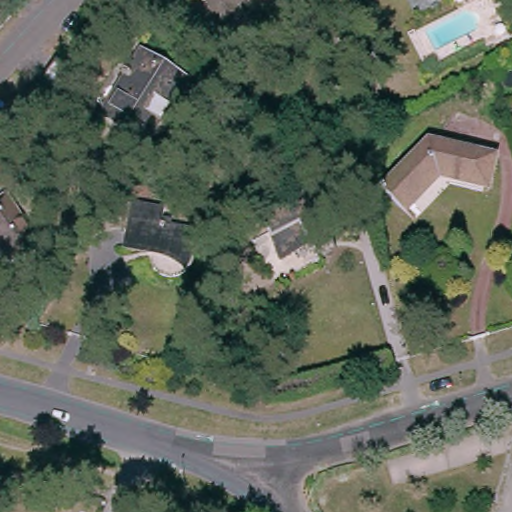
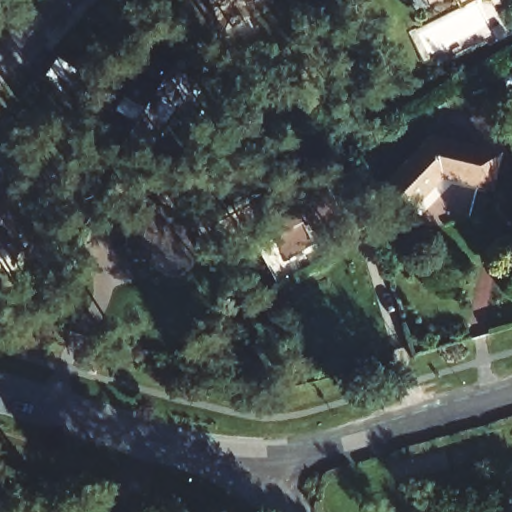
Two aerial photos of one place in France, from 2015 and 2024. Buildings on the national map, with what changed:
unchanged [(222,25),(214,11),(207,0),(240,0),(247,12),(222,25)]
unchanged [(428,4),(426,0),(435,0),(428,4)]
unchanged [(161,59),(159,64),(186,79),(171,105),(167,103),(146,140),(116,125),(120,117),(106,109),(139,47),(161,59)]
unchanged [(478,184),(431,171),(394,209),(371,187),(419,133),(485,151),(478,184)]
unchanged [(311,169),(334,209),(272,241),(250,200),(311,169)]
unchanged [(0,248),(0,195),(4,192),(37,244),(10,263),(0,248)]
unchanged [(164,204),(163,209),(170,210),(168,218),(165,218),(164,224),(190,230),(196,230),(187,266),(174,255),(125,243),(130,217),(132,217),(136,199),(164,204)]

